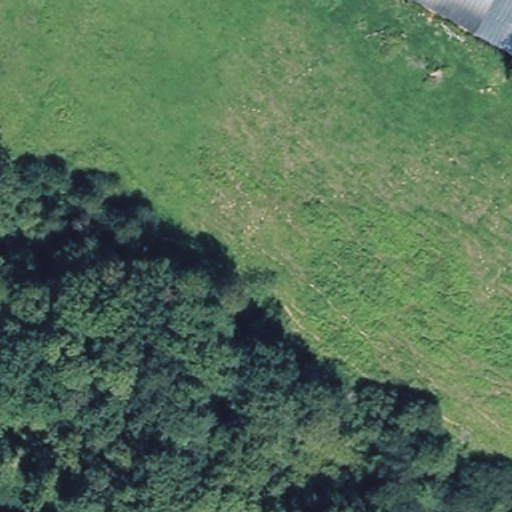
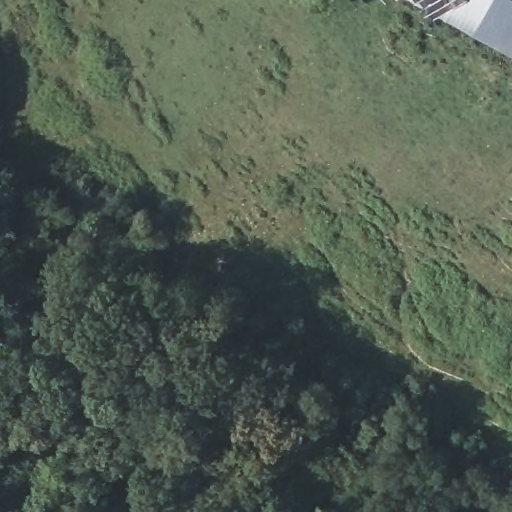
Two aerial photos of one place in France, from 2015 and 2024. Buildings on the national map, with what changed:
unchanged [(512,0),(512,54),(415,0),(512,0)]

